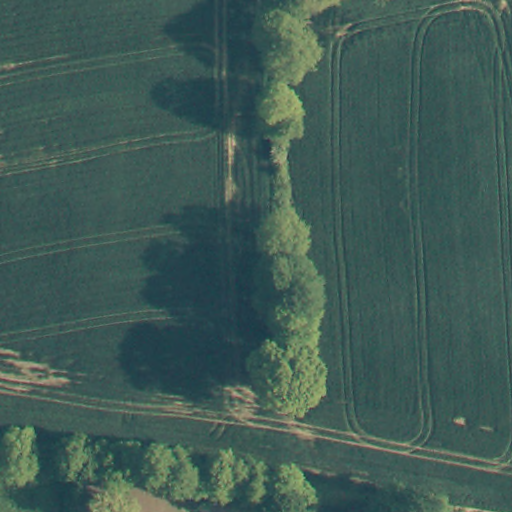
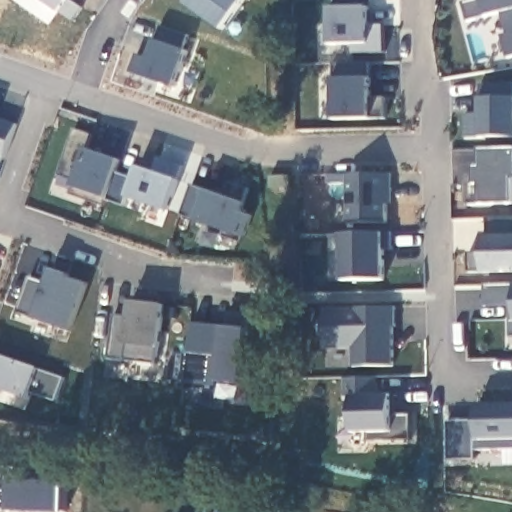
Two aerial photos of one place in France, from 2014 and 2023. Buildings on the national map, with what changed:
new [(44,0),(72,0),(82,7),(72,20),(44,0)]
new [(188,0),(243,0),(222,30),(186,3),(188,0)]
new [(512,58),(508,60),(502,36),(507,35),(501,14),(467,22),(462,3),(473,0),(512,0),(512,58)]
new [(369,25),(384,26),(385,52),(355,52),(354,44),(331,44),(330,7),(369,7),(369,25)]
new [(148,58),(159,25),(187,35),(183,49),(187,50),(174,87),(129,71),(135,54),(148,58)]
new [(369,65),(370,77),(370,99),(385,99),(386,118),(373,118),(371,119),(334,119),(333,79),(334,65),(369,65)]
new [(466,137),(466,115),(480,114),(480,98),(481,84),(512,84),(512,137),(482,137),(466,137)]
new [(4,159),(0,158),(0,119),(16,125),(4,159)]
new [(75,130),(92,135),(88,149),(121,160),(117,173),(134,179),(139,165),(155,171),(160,157),(185,166),(179,180),(169,210),(127,197),(125,204),(108,198),(105,205),(73,195),(75,188),(77,180),(60,174),(75,130)]
new [(512,181),(507,181),(508,205),(466,206),(465,185),(480,184),(479,149),(512,148),(512,181)]
new [(329,174),(347,175),(384,174),(392,174),(392,204),(387,205),(386,222),(348,225),(348,184),(330,184),(329,174)]
new [(512,205),(508,205),(507,181),(512,181),(512,205)]
new [(248,189),(244,202),(241,211),(252,215),(245,237),(242,243),(225,236),(226,230),(196,221),(207,189),(225,195),(230,183),(248,189)]
new [(469,252),(488,251),(488,217),(512,216),(512,271),(470,271),(469,252)]
new [(394,232),(394,249),(384,249),(384,280),(345,281),(344,234),(384,232),(394,232)]
new [(31,278),(47,285),(53,268),(70,275),(69,277),(88,283),(73,330),(36,318),(20,311),(31,278)]
new [(512,336),(511,305),(486,306),(485,285),(512,284),(512,336)]
new [(131,315),(132,300),(165,305),(160,346),(157,362),(111,358),(115,314),(131,315)]
new [(326,308),(396,307),(396,326),(393,327),(393,365),(355,367),(354,348),(326,348),(326,308)]
new [(193,323),(226,327),(229,313),(250,315),(248,330),(241,387),(219,385),(187,382),(193,323)]
new [(41,369),(65,378),(57,401),(33,391),(30,399),(29,400),(11,395),(11,392),(0,388),(0,353),(41,369)]
new [(412,439),(370,440),(370,431),(352,431),(352,395),(344,395),(345,377),(377,377),(377,395),(394,395),(393,415),(411,415),(412,439)]
new [(512,451),(473,451),(474,460),(446,461),(446,444),(445,421),(475,420),(475,439),(475,405),(512,405),(512,451)]

